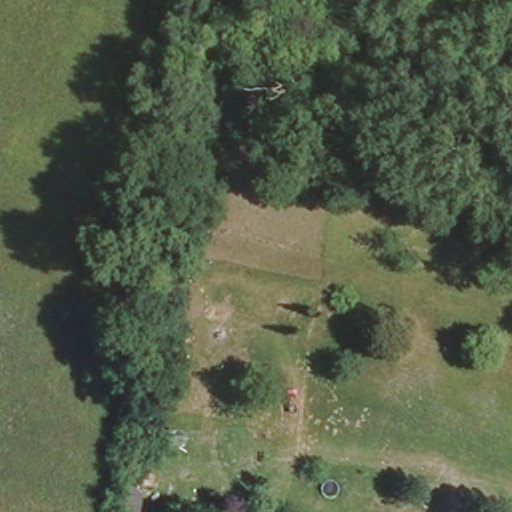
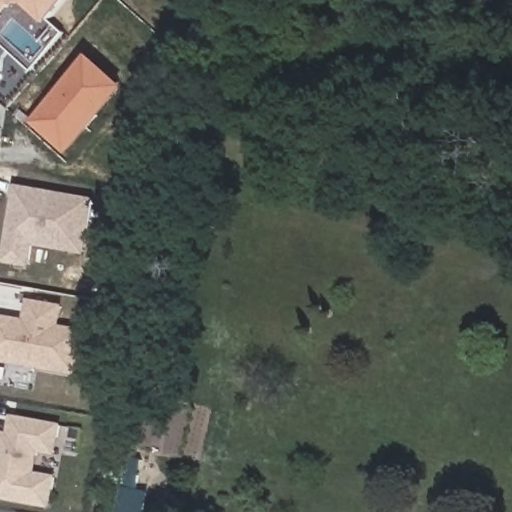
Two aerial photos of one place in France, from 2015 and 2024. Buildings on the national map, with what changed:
new [(51,24),(29,4),(16,6),(0,24),(0,0),(72,0),(51,24)]
new [(90,54),(128,86),(67,154),(30,122),(90,54)]
new [(97,197),(87,255),(36,246),(32,267),(2,262),(16,183),(97,197)]
new [(34,302),(64,306),(60,326),(88,331),(81,372),(0,359),(0,316),(30,321),(34,302)]
new [(9,431),(12,414),(64,423),(59,455),(41,453),(37,471),(59,475),(54,509),(0,499),(0,438),(2,430),(9,431)]
new [(144,458),(139,487),(148,488),(144,512),(117,512),(127,455),(144,458)]

